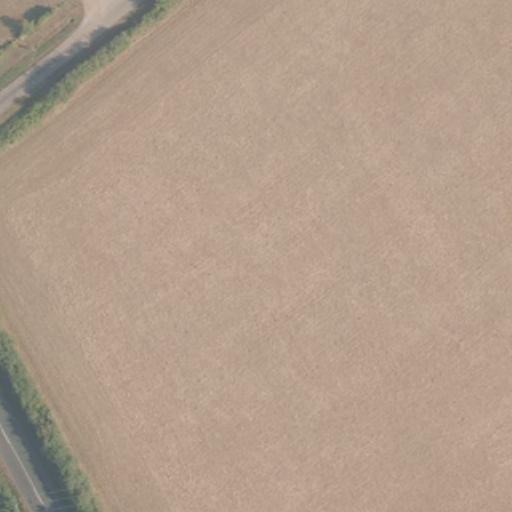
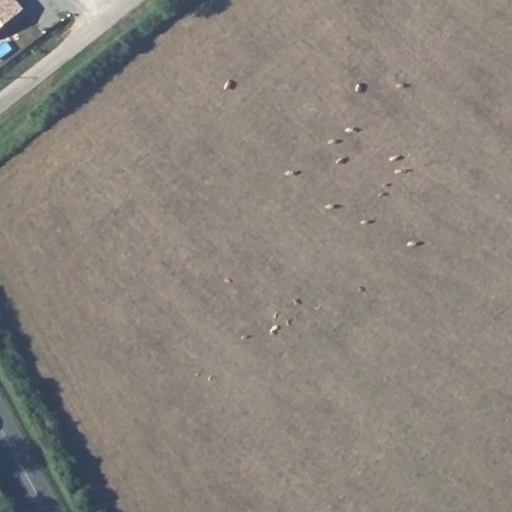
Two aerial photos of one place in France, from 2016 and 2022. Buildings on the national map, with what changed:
new [(0,27),(0,0),(16,0),(23,9),(0,27)]

